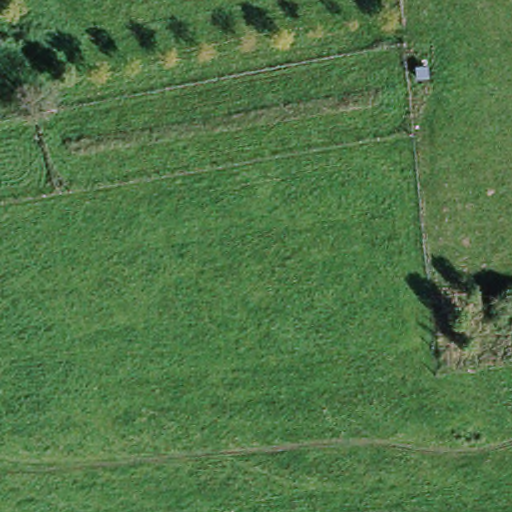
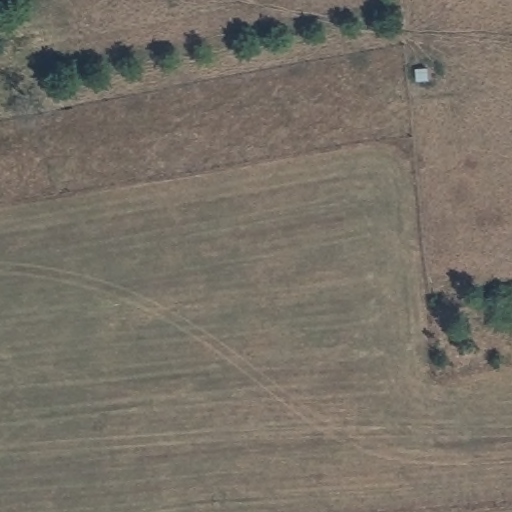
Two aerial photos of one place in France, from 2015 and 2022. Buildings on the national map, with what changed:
[]

